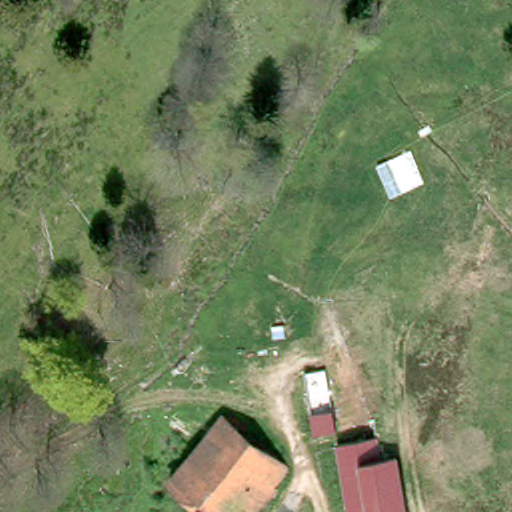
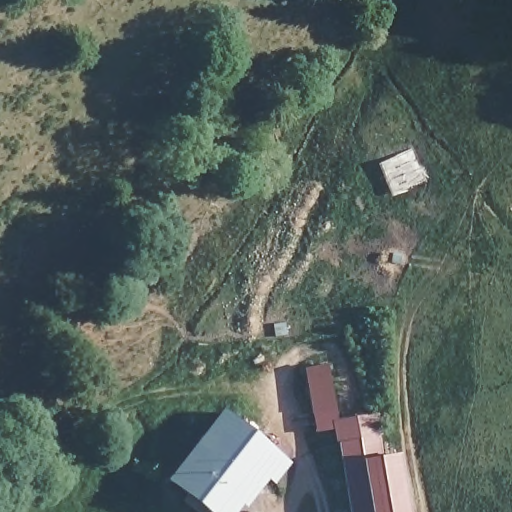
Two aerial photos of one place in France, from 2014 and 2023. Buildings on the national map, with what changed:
new [(338,442),(336,431),(316,434),(306,368),(327,365),(336,419),(377,413),(380,434),(338,442)]
unchanged [(260,512),(251,512),(192,512),(198,504),(166,478),(229,414),(298,469),(260,512)]
unchanged [(385,458),(401,456),(410,512),(350,512),(338,442),(380,434),(385,458)]

